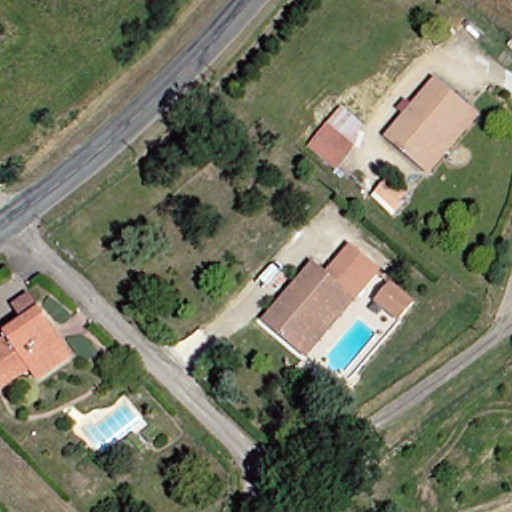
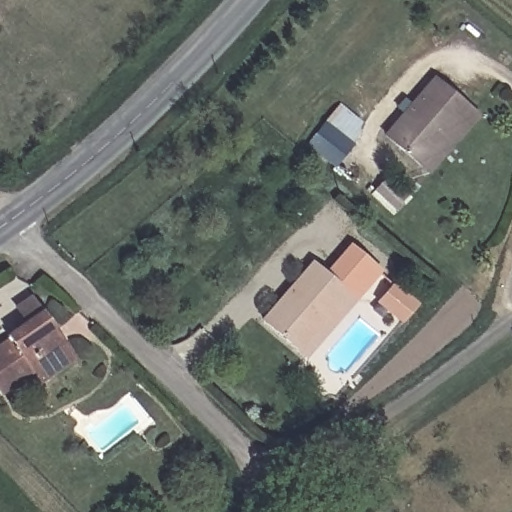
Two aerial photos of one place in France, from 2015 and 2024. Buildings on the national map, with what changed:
unchanged [(388,129),(434,72),(471,102),(481,110),(434,168),(426,160),(388,129)]
unchanged [(339,161),(312,140),(328,120),(355,141),(339,161)]
unchanged [(263,315),(311,262),(324,273),(352,244),(380,269),(354,300),(305,352),(297,344),(263,315)]
unchanged [(398,320),(377,301),(392,285),(412,303),(398,320)]
unchanged [(31,368),(0,390),(0,342),(9,335),(7,331),(41,307),(67,343),(74,353),(38,378),(31,368)]

